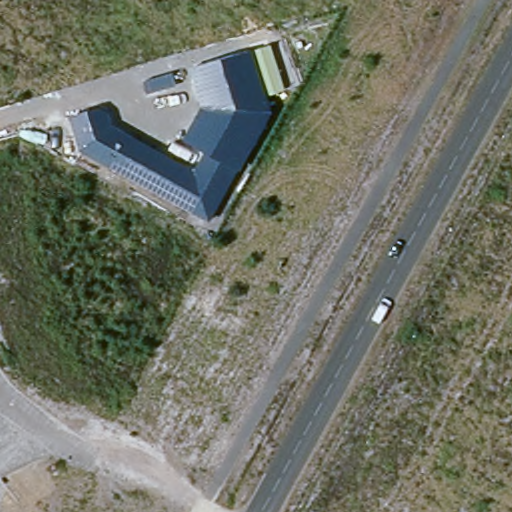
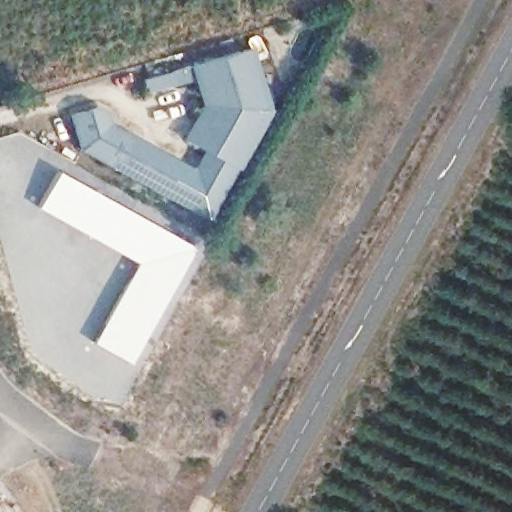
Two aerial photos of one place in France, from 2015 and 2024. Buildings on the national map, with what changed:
unchanged [(286,90),(268,95),(275,114),(243,167),(211,222),(81,151),(72,117),(110,107),(114,122),(195,168),(204,150),(185,138),(202,109),(190,68),(252,50),(272,44),(286,90)]
new [(193,246),(130,362),(94,342),(137,262),(37,206),(57,170),(193,246)]

